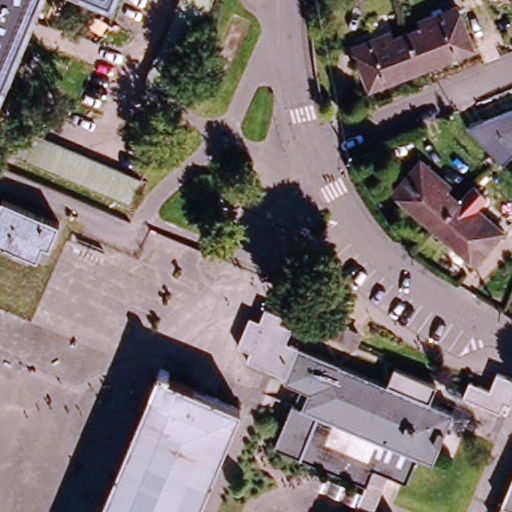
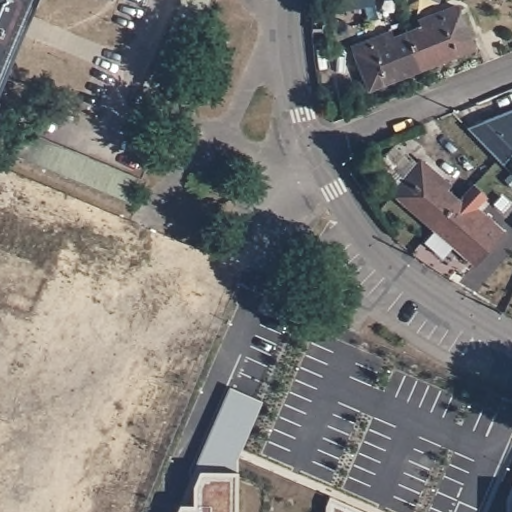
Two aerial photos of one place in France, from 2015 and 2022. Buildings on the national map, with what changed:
unchanged [(39,0),(0,94),(0,0),(39,0)]
unchanged [(181,0),(214,0),(175,97),(155,89),(146,84),(181,0)]
unchanged [(350,2),(350,0),(364,0),(364,1),(350,2)]
unchanged [(462,0),(478,0),(466,6),(462,0)]
unchanged [(407,35),(422,30),(420,25),(457,11),(473,51),(421,71),(407,35)]
unchanged [(367,91),(352,50),(389,36),(391,41),(407,35),(421,71),(367,91)]
unchanged [(57,170),(7,150),(18,124),(67,144),(57,170)]
unchanged [(489,125),(510,142),(499,155),(479,137),(489,125)]
unchanged [(134,201),(127,199),(57,170),(67,144),(138,173),(144,175),(134,201)]
unchanged [(395,190),(422,159),(450,184),(446,188),(459,199),(435,226),(395,190)]
demolished [(486,182),(505,199),(497,208),(478,191),(486,182)]
unchanged [(2,198),(60,223),(50,246),(43,242),(37,256),(0,241),(0,203),(2,198)]
unchanged [(459,199),(472,211),(477,207),(503,231),(475,262),(435,226),(459,199)]
demolished [(276,446),(294,404),(302,407),(307,393),(300,389),(283,383),(285,379),(247,362),(250,352),(238,347),(248,322),(260,326),(262,321),(267,308),(283,315),(281,321),(293,327),(287,342),(387,385),(394,370),(438,388),(432,404),(455,414),(434,464),(419,458),(407,486),(390,479),(373,472),(367,484),(276,446)]
unchanged [(250,317),(262,321),(260,326),(248,322),(250,317)]
demolished [(160,368),(170,372),(167,378),(240,409),(197,512),(100,512),(160,368)]
demolished [(475,370),(512,386),(512,401),(507,412),(502,409),(478,399),(475,408),(460,401),(475,370)]
new [(212,437),(231,389),(260,402),(241,448),(212,437)]
new [(182,506),(196,508),(195,472),(207,445),(235,457),(234,512),(180,512),(182,506)]
demolished [(497,509),(495,508),(498,500),(502,501),(512,478),(512,512),(496,512),(497,509)]
new [(507,501),(512,488),(512,512),(506,512),(507,501)]
new [(328,498),(361,512),(328,512),(328,498)]

